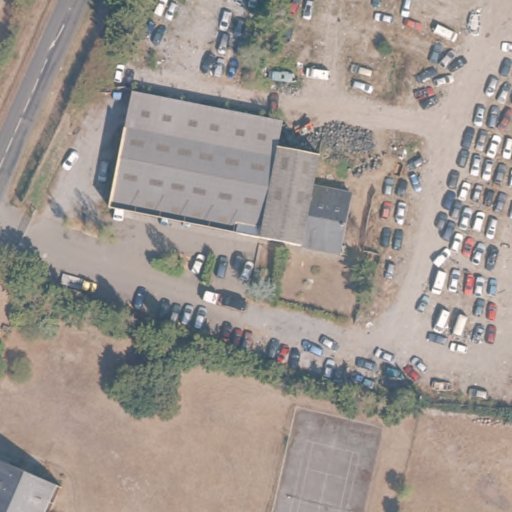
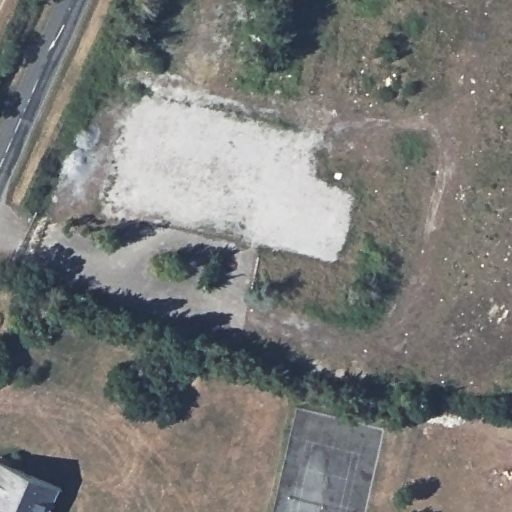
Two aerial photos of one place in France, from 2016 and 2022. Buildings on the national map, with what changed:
demolished [(275,123),(277,110),(320,116),(310,187),(350,193),(342,249),(111,217),(126,102),(275,123)]
unchanged [(65,492),(55,512),(0,512),(0,472),(5,462),(65,492)]

